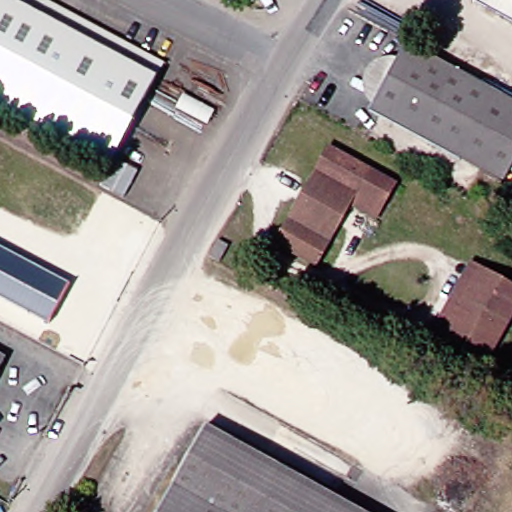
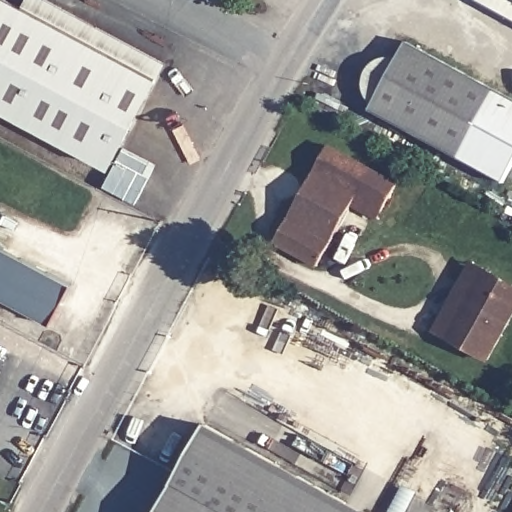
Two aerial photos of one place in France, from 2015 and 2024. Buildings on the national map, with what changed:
unchanged [(136,176),(111,163),(110,166),(0,107),(0,0),(13,0),(25,6),(28,0),(46,0),(165,64),(121,144),(147,157),(136,176)]
unchanged [(512,22),(472,0),(512,0),(512,22)]
unchanged [(456,159),(367,110),(404,42),(493,91),(456,159)]
unchanged [(456,159),(493,91),(512,101),(512,160),(500,182),(456,159)]
unchanged [(316,266),(272,242),(325,145),(395,183),(375,218),(350,205),(316,266)]
unchanged [(0,296),(0,248),(70,284),(49,322),(0,296)]
unchanged [(443,336),(433,330),(470,262),(480,268),(512,286),(512,311),(485,359),(443,336)]
unchanged [(0,364),(0,358),(2,359),(0,364)]
unchanged [(200,426),(355,512),(152,512),(193,437),(200,426)]

